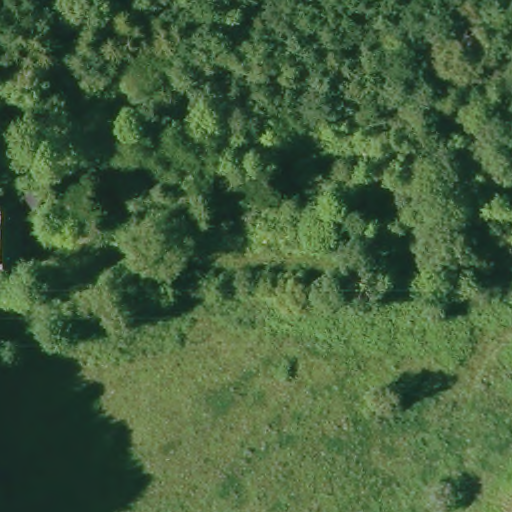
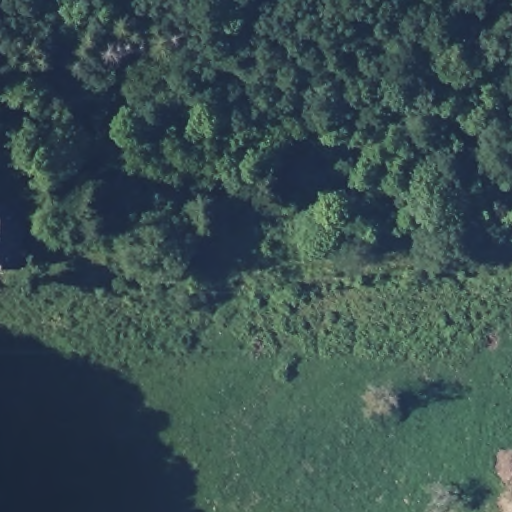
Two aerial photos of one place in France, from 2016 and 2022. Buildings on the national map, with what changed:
unchanged [(7,199),(28,204),(25,217),(10,215),(8,274),(0,275),(0,204),(6,203),(7,199)]

